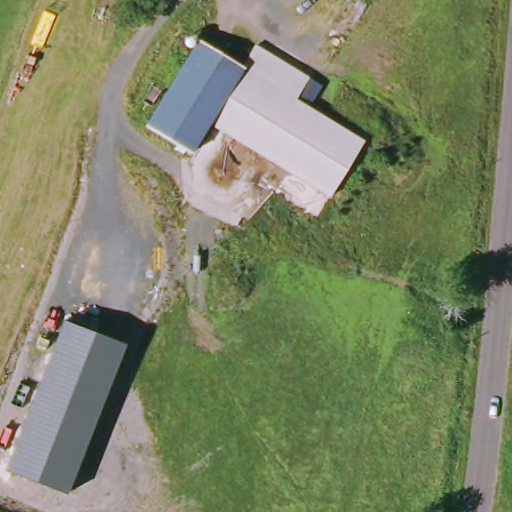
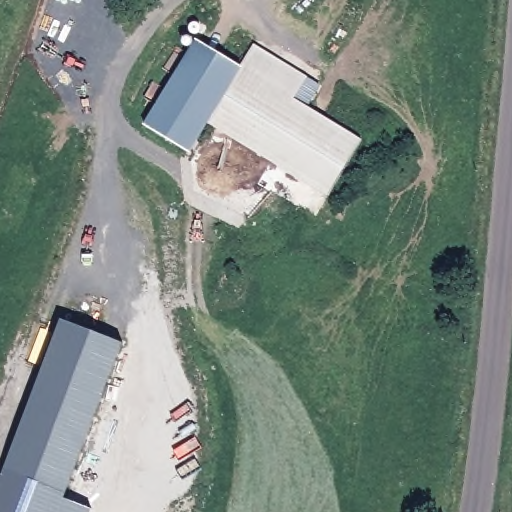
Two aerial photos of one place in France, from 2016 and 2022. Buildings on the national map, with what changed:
unchanged [(313,79),(300,100),(367,141),(332,198),(212,124),(194,154),(146,122),(200,38),(247,67),(260,46),(313,79)]
unchanged [(67,494),(5,471),(62,321),(124,345),(67,494)]
new [(87,512),(0,512),(0,469),(5,471),(67,494),(89,506),(87,512)]

